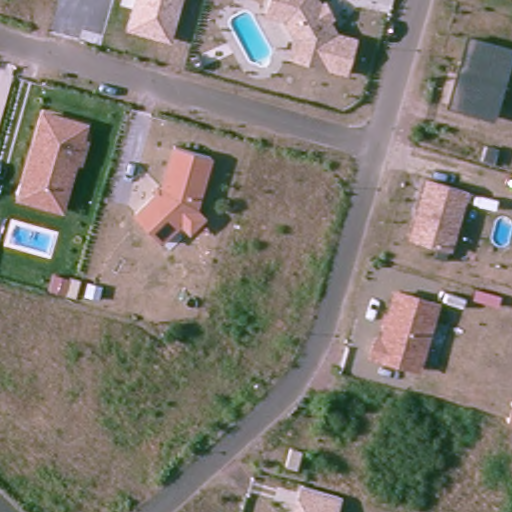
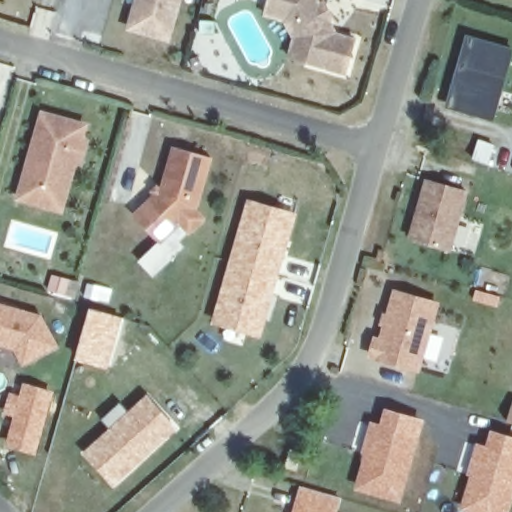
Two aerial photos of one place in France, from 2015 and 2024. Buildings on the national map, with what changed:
unchanged [(126,30),(134,0),(182,0),(170,41),(126,30)]
unchanged [(320,2),(324,0),(325,0),(335,20),(331,21),(337,32),(357,39),(346,75),(288,59),(293,40),(285,22),(263,16),(268,0),(319,0),(320,2)]
unchanged [(512,57),(494,121),(445,108),(466,35),(512,47),(512,57)]
unchanged [(39,110),(88,124),(84,139),(90,140),(82,166),(77,165),(64,212),(14,199),(39,110)]
unchanged [(213,157),(199,209),(206,217),(190,234),(180,226),(160,245),(133,214),(158,190),(171,147),(213,157)]
unchanged [(469,190),(451,252),(407,240),(424,179),(469,190)]
new [(246,198),(297,212),(260,338),(210,323),(246,198)]
new [(51,273),(78,281),(74,298),(45,291),(51,273)]
unchanged [(419,367),(372,354),(377,337),(382,340),(397,290),(438,301),(419,367)]
new [(42,315),(56,343),(25,360),(18,345),(1,340),(0,341),(0,304),(42,315)]
new [(89,307),(123,317),(108,369),(73,359),(89,307)]
new [(8,390),(18,393),(22,381),(53,390),(35,455),(3,446),(12,417),(1,413),(8,390)]
new [(107,427),(100,418),(119,401),(127,410),(147,392),(178,428),(111,488),(79,452),(107,427)]
new [(369,420),(378,422),(383,407),(425,419),(399,502),(353,488),(369,420)]
new [(512,422),(509,421),(512,411),(512,422)]
new [(465,473),(474,442),(484,445),(489,428),(512,435),(512,506),(510,512),(463,512),(458,510),(468,475),(465,473)]
unchanged [(298,468),(287,466),(292,448),(302,451),(298,468)]
unchanged [(300,486),(322,493),(335,496),(331,512),(293,512),(293,509),(300,486)]

